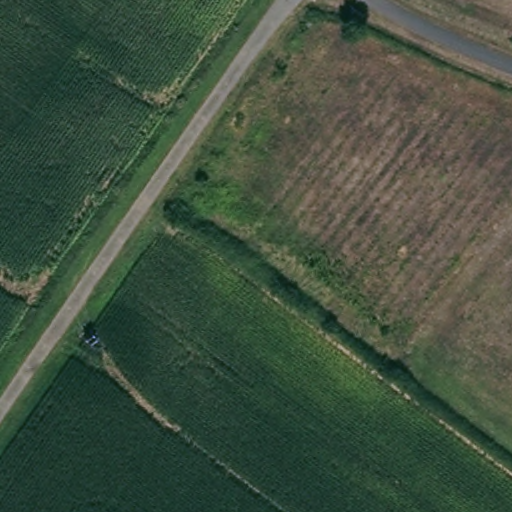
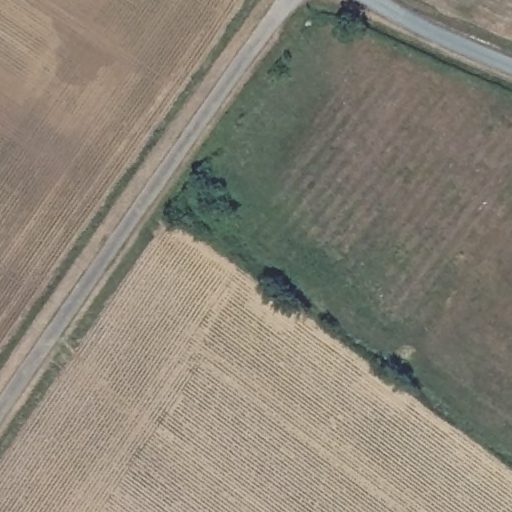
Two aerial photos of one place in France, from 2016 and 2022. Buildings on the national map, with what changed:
[]

